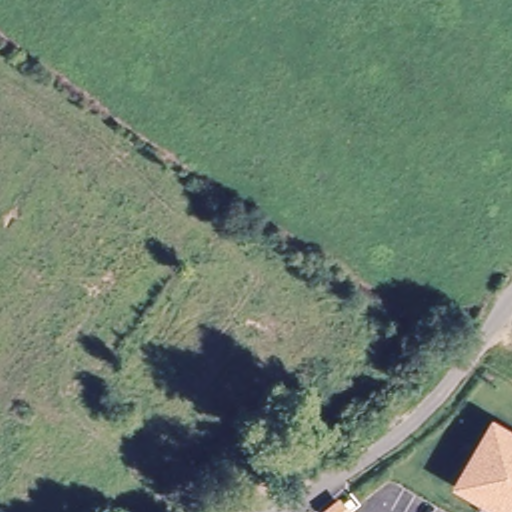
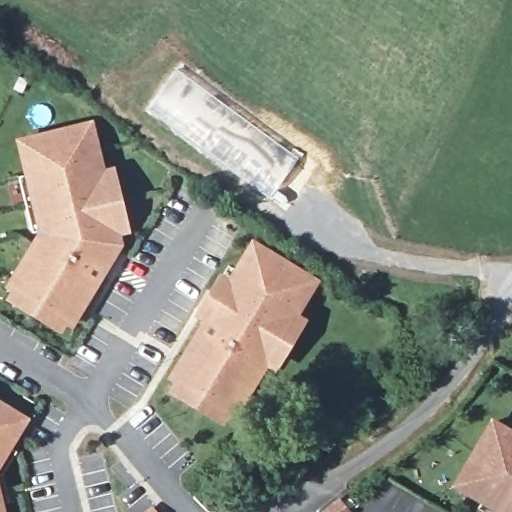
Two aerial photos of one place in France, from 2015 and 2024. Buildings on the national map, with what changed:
new [(93,119),(106,169),(115,165),(130,233),(120,236),(123,245),(71,329),(66,326),(61,334),(3,298),(8,290),(3,287),(37,231),(14,139),(93,119)]
new [(320,280),(301,315),(308,318),(278,372),(272,367),(238,419),(231,414),(223,425),(166,390),(171,380),(165,377),(200,321),(192,316),(218,272),(227,277),(251,239),(320,280)]
new [(0,469),(0,399),(30,417),(0,469)]
unchanged [(512,512),(495,512),(451,485),(490,415),(512,428),(512,512)]
new [(6,512),(0,512),(0,489),(6,512)]

